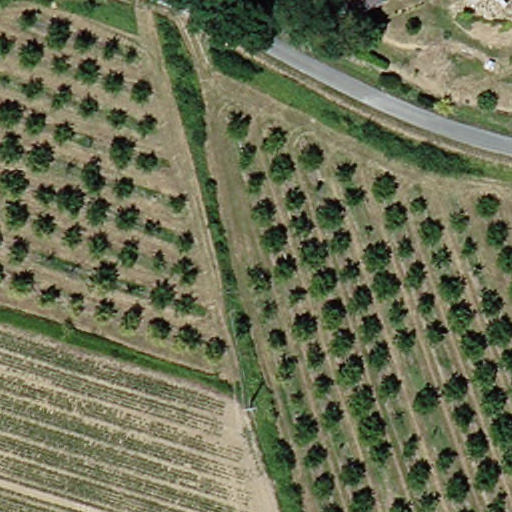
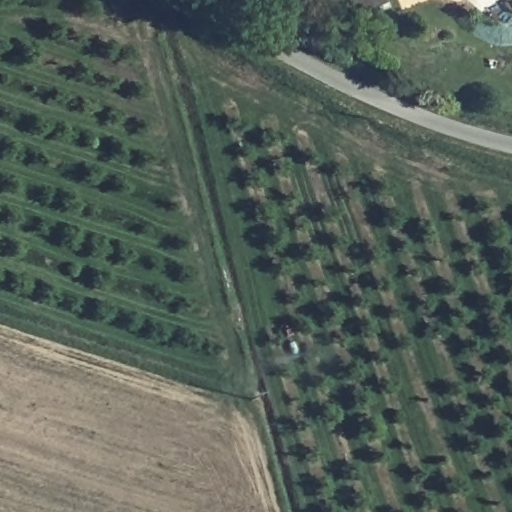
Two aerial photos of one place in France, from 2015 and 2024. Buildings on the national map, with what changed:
unchanged [(390,3),(351,12),(348,0),(388,0),(390,3)]

